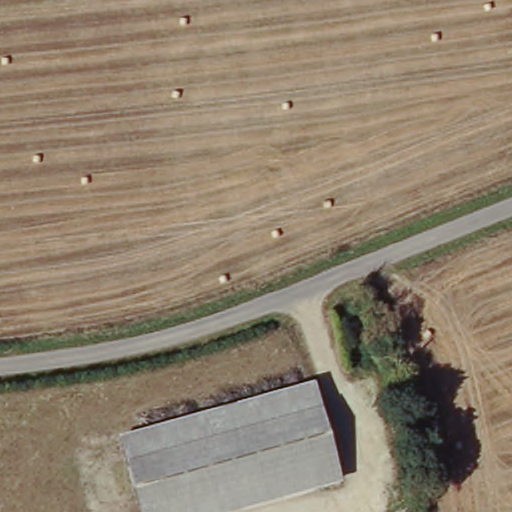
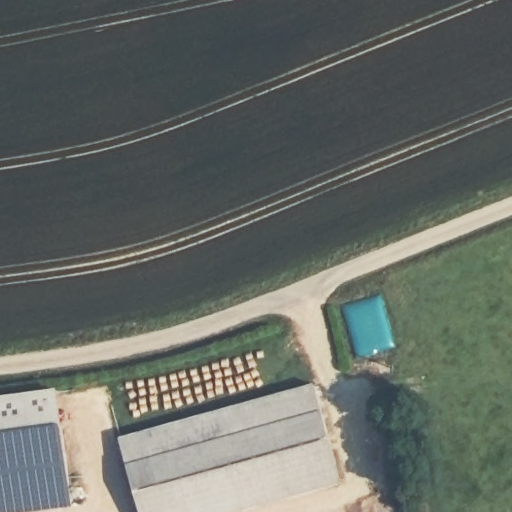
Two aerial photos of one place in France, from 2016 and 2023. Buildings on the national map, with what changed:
unchanged [(343,483),(239,512),(139,512),(118,436),(315,382),(343,483)]
new [(0,512),(0,397),(58,390),(72,506),(25,512),(0,512)]

